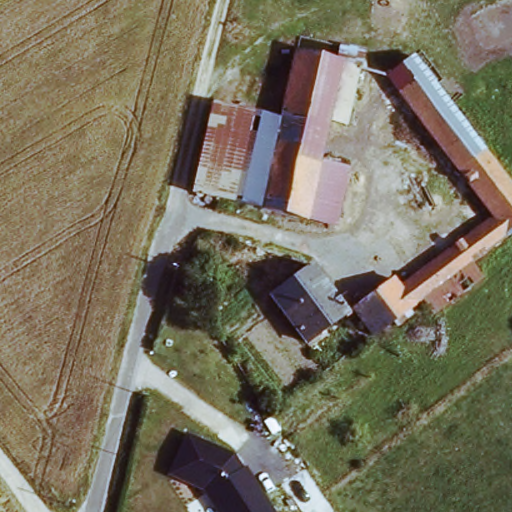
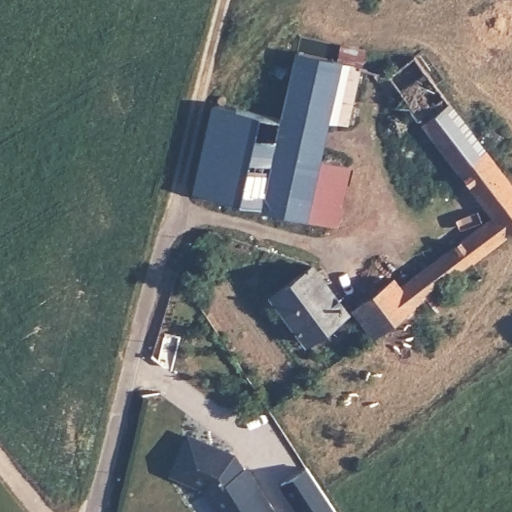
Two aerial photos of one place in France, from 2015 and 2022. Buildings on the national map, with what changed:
unchanged [(295,52),(335,60),(340,42),(362,47),(358,65),(354,67),(347,104),(353,106),(352,120),(327,118),(317,159),(305,218),(260,208),(280,119),(295,52)]
unchanged [(372,332),(352,304),(392,274),(399,283),(493,214),(390,71),(415,52),(512,187),(512,230),(470,260),(422,297),(372,332)]
unchanged [(280,119),(260,208),(187,192),(189,190),(207,104),(280,119)]
unchanged [(346,165),(332,223),(305,218),(317,159),(346,165)]
unchanged [(434,314),(422,297),(470,260),(482,277),(434,314)]
unchanged [(311,262),(347,308),(308,339),(272,295),(270,294),(311,262)]
unchanged [(278,422),(271,411),(280,405),(289,417),(280,424),(278,422)]
unchanged [(237,458),(272,512),(214,512),(203,495),(167,480),(185,435),(237,458)]
new [(307,468),(335,512),(298,512),(280,485),(307,468)]

